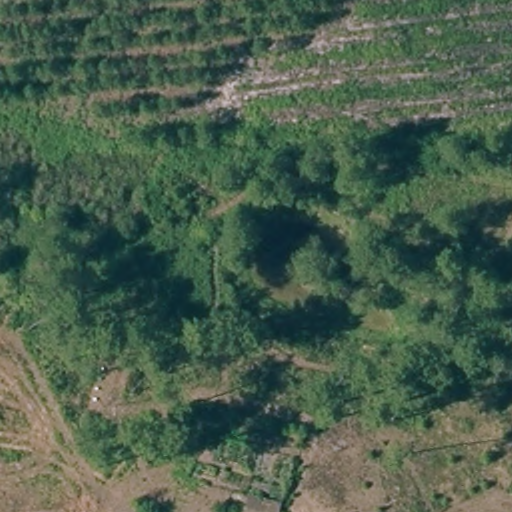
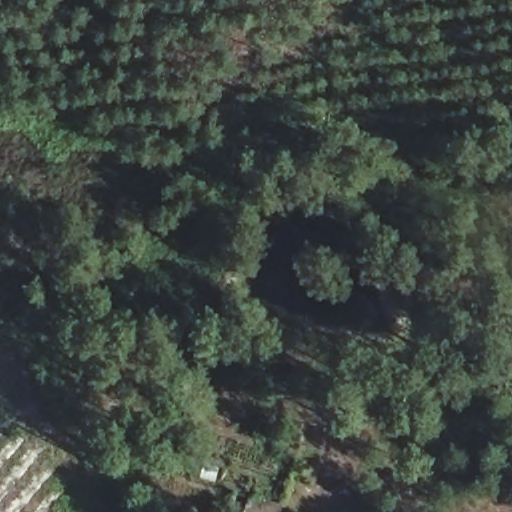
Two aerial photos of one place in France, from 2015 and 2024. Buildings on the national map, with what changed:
unchanged [(247,502),(280,512),(279,512),(244,512),(247,502)]

